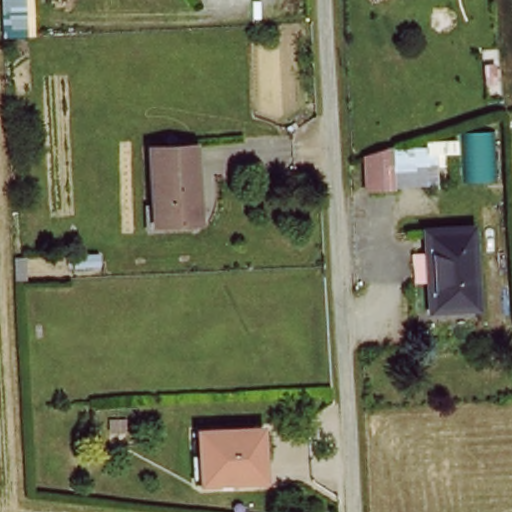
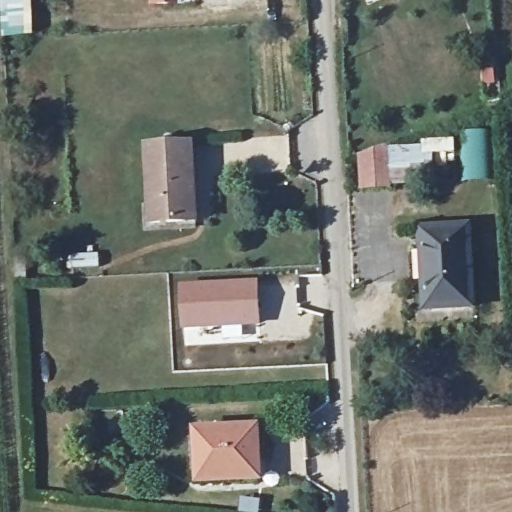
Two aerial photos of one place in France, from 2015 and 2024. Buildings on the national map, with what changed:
new [(5,39),(3,0),(33,0),(35,37),(5,39)]
unchanged [(198,222),(156,222),(158,142),(199,144),(198,222)]
unchanged [(399,149),(404,178),(366,190),(359,162),(399,149)]
unchanged [(477,306),(432,309),(428,229),(474,227),(477,306)]
new [(259,279),(261,326),(184,333),(180,284),(259,279)]
unchanged [(261,480),(197,483),(196,431),(259,429),(261,480)]

